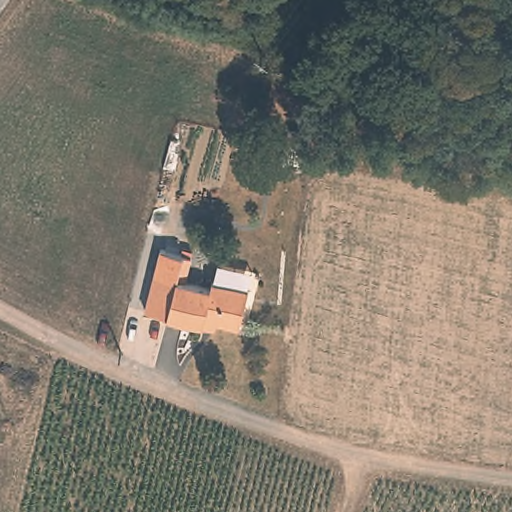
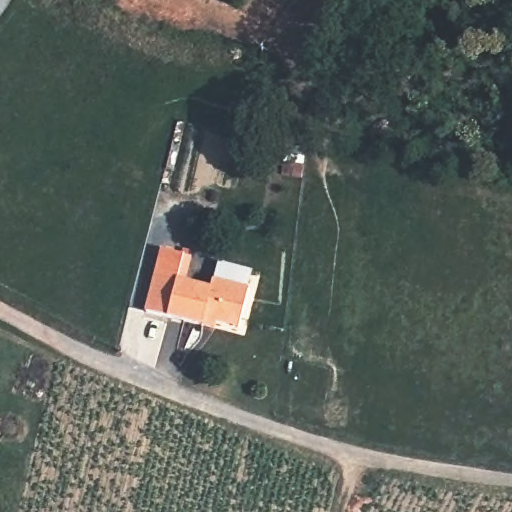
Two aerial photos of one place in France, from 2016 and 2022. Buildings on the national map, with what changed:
unchanged [(144,310),(162,249),(192,257),(186,281),(180,280),(171,317),(144,310)]
unchanged [(217,262),(250,270),(246,287),(217,281),(215,288),(209,287),(217,262)]
unchanged [(217,281),(252,289),(244,326),(208,318),(207,326),(171,317),(180,280),(215,288),(217,281)]

